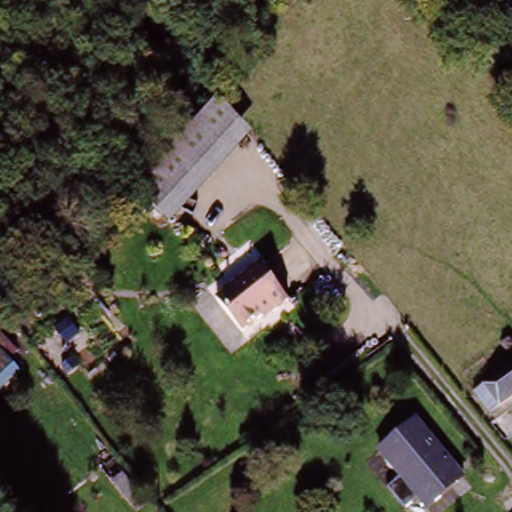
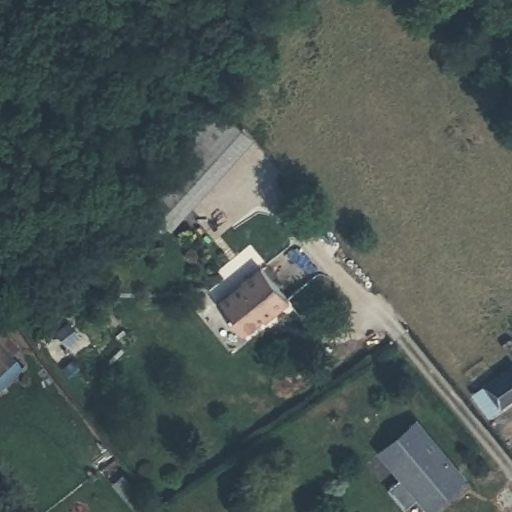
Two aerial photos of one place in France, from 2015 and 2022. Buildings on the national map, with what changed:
unchanged [(257,136),(168,228),(130,191),(215,99),(257,136)]
unchanged [(242,342),(215,305),(262,268),(290,305),(279,316),(274,313),(242,342)]
unchanged [(19,384),(0,401),(0,370),(4,367),(19,384)]
unchanged [(512,369),(512,399),(504,407),(495,413),(483,393),(490,387),(512,369)]
unchanged [(427,512),(419,512),(412,502),(397,512),(381,489),(395,478),(374,447),(414,417),(453,473),(462,486),(450,495),(427,512)]
unchanged [(125,468),(145,497),(134,504),(112,477),(125,468)]

